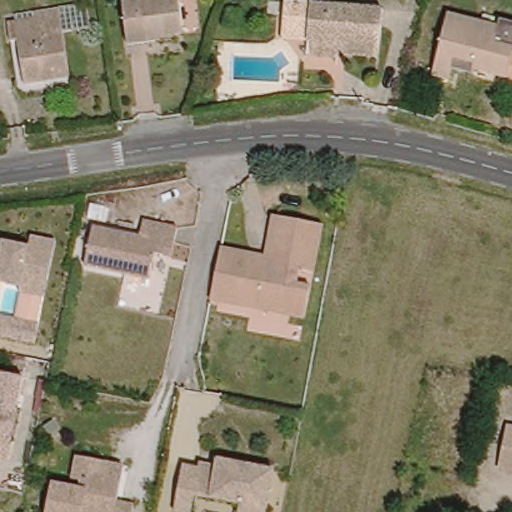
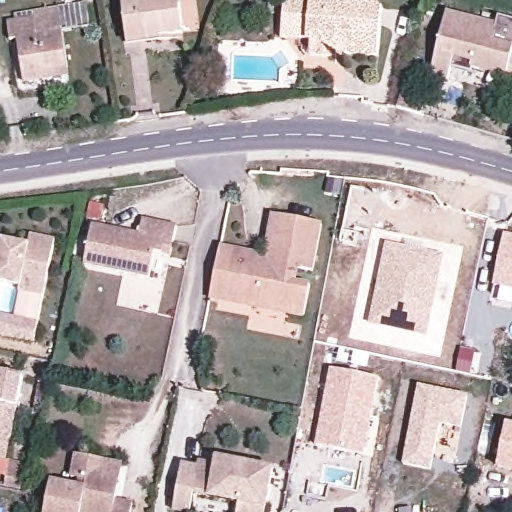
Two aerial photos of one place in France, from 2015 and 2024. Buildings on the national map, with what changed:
unchanged [(125,34),(122,0),(180,0),(183,28),(183,33),(126,40),(125,34)]
unchanged [(308,39),(309,34),(301,33),(283,30),(287,0),(313,0),(384,8),(377,57),(346,54),(347,44),(327,41),(325,55),(306,53),(308,39)]
unchanged [(432,59),(450,0),(456,0),(486,9),(502,14),(497,30),(512,35),(512,70),(476,58),(455,51),(451,66),(432,59)]
unchanged [(20,81),(15,38),(3,39),(2,24),(32,20),(32,15),(57,13),(78,10),(82,34),(60,37),(63,67),(65,76),(41,79),(20,81)]
new [(427,96),(422,113),(397,105),(402,89),(427,96)]
unchanged [(264,254),(273,212),(285,214),(322,223),(312,270),(297,267),(294,280),(309,283),(302,314),(207,294),(217,244),(252,251),(264,254)]
unchanged [(157,254),(152,277),(87,264),(95,225),(143,235),(147,220),(179,227),(175,244),(172,256),(157,254)]
unchanged [(3,236),(30,242),(35,231),(57,236),(47,289),(0,280),(0,242),(2,243),(3,236)]
new [(492,285),(503,234),(512,235),(512,289),(492,285)]
new [(427,335),(369,323),(387,243),(445,255),(427,335)]
unchanged [(8,408),(0,406),(0,365),(18,370),(8,408)]
new [(331,368),(378,378),(363,454),(313,444),(331,368)]
new [(417,383),(467,396),(460,429),(442,425),(430,470),(400,463),(417,383)]
unchanged [(510,461),(508,467),(488,462),(498,423),(512,426),(512,461),(510,461)]
unchanged [(51,482),(78,487),(80,479),(72,479),(77,455),(105,461),(123,464),(120,479),(116,498),(132,501),(130,512),(129,512),(45,512),(51,482)]
unchanged [(190,494),(187,512),(170,512),(179,469),(195,472),(197,464),(215,468),(216,462),(270,472),(263,507),(262,512),(234,512),(237,502),(190,494)]

